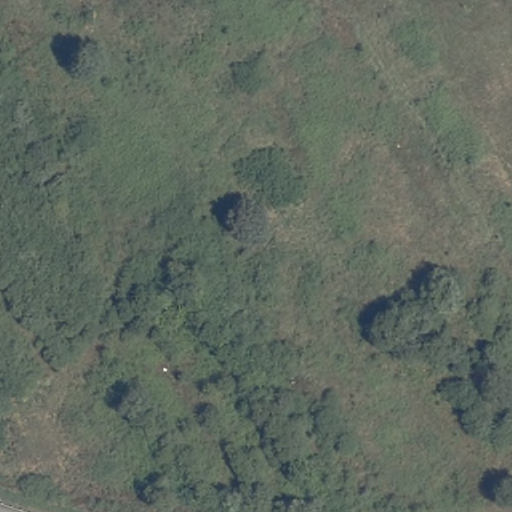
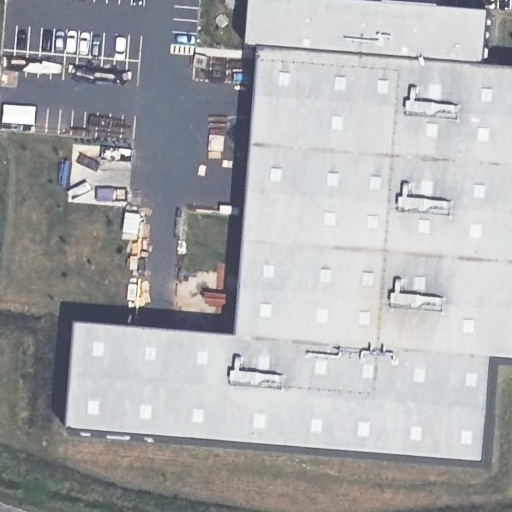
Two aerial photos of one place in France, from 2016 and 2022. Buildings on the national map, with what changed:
new [(495,15),(490,70),(512,72),(512,364),(496,362),(489,468),(74,435),(82,327),(243,340),(266,54),(252,52),(257,0),(325,0),(325,1),(495,15)]
demolished [(190,306),(173,315),(167,302),(184,292),(190,306)]

